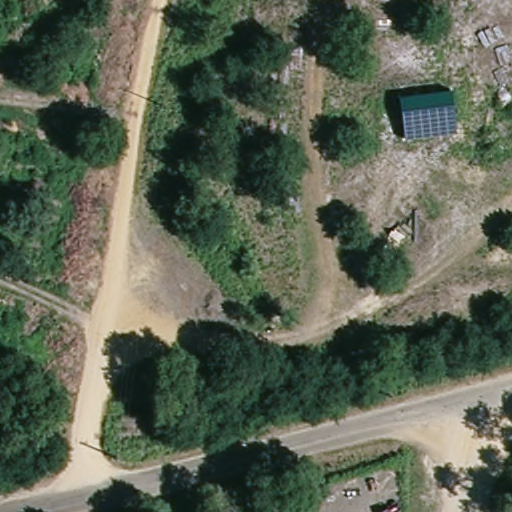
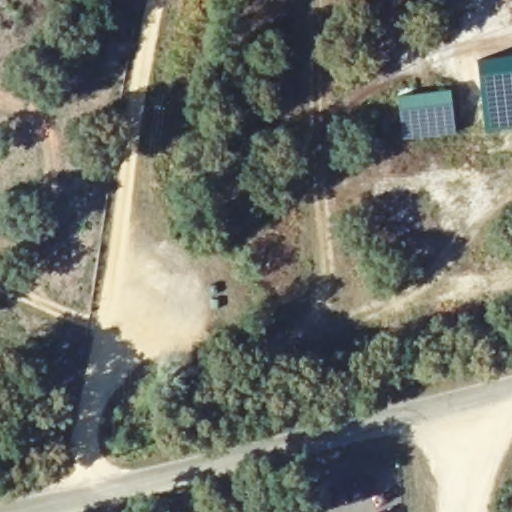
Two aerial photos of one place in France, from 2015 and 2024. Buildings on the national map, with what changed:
new [(495,64),(494,57),(512,54),(512,129),(486,132),(478,66),(495,64)]
unchanged [(458,133),(405,139),(400,96),(451,89),(458,133)]

